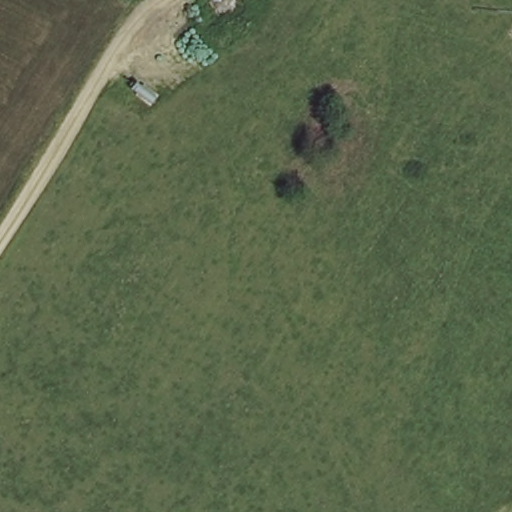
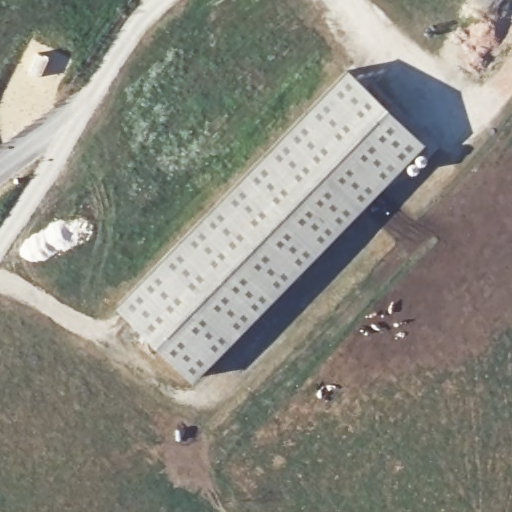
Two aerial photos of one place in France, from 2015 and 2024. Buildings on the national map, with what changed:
new [(423,142),(194,382),(117,310),(355,68),(423,142)]

